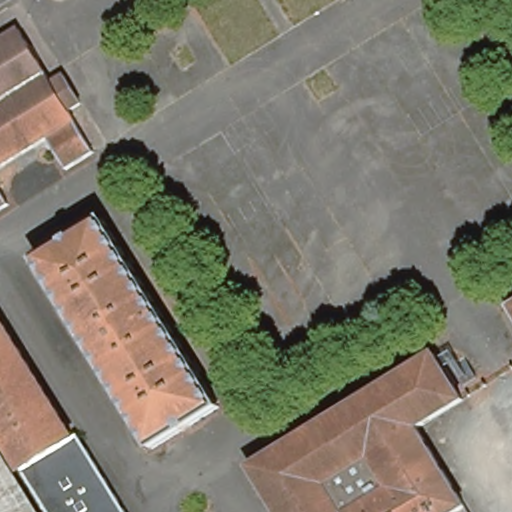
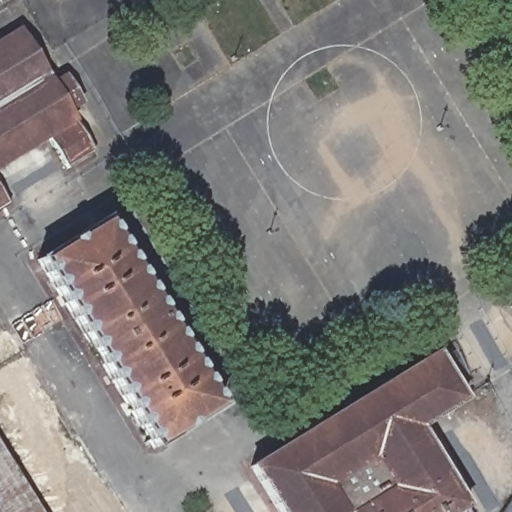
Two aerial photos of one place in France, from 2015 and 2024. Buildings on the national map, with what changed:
unchanged [(45,138),(0,166),(0,39),(16,29),(52,85),(64,78),(78,101),(66,107),(75,120),(73,121),(45,138)]
unchanged [(94,154),(67,170),(45,138),(73,121),(94,154)]
unchanged [(0,211),(0,186),(11,204),(0,211)]
unchanged [(222,410),(156,450),(40,261),(106,220),(222,410)]
demolished [(75,434),(123,512),(44,512),(0,441),(0,319),(71,436),(75,434)]
unchanged [(446,512),(285,512),(252,457),(436,347),(462,392),(418,418),(467,500),(446,512)]
unchanged [(33,512),(0,512),(0,459),(16,485),(33,512)]

